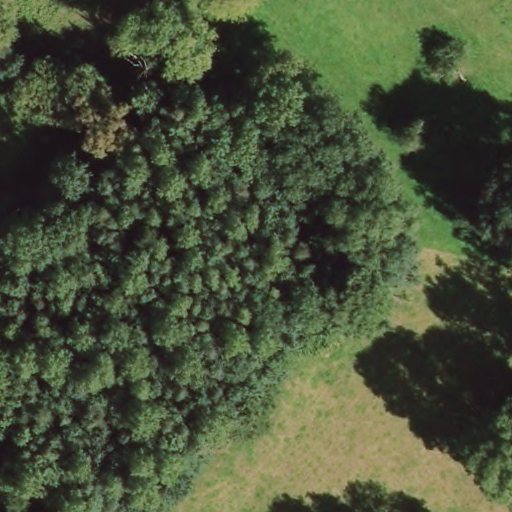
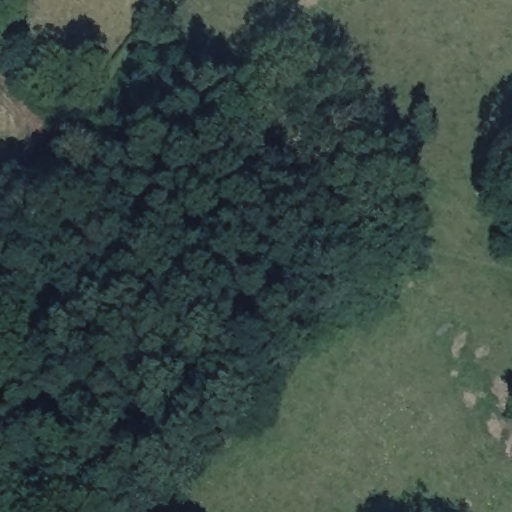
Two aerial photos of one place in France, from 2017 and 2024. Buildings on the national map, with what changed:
[]

